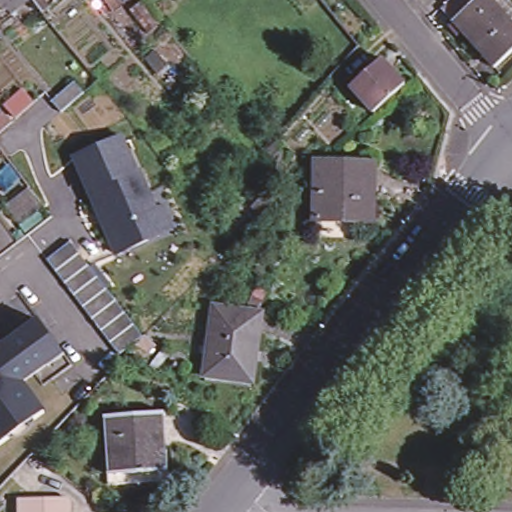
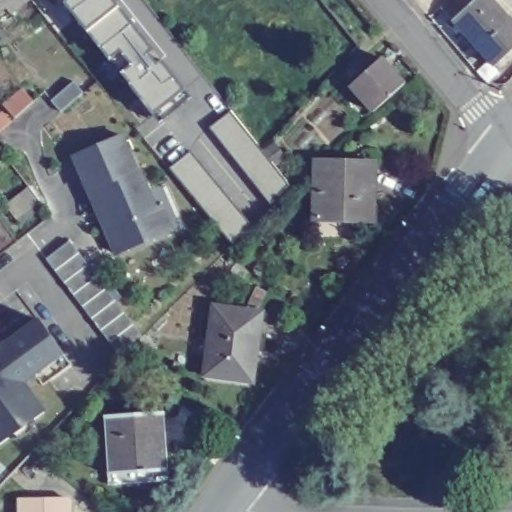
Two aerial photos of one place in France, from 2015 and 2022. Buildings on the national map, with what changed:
unchanged [(7,19),(0,7),(0,0),(23,0),(26,5),(7,19)]
new [(183,90),(191,99),(160,124),(155,116),(120,73),(100,49),(64,4),(61,0),(112,0),(117,7),(183,90)]
unchanged [(494,0),(488,5),(503,22),(473,49),(443,12),(436,4),(441,0),(494,0)]
unchanged [(503,22),(512,32),(512,58),(493,74),(473,49),(503,22)]
unchanged [(371,110),(346,84),(377,55),(401,81),(371,110)]
unchanged [(53,99),(75,78),(85,89),(63,109),(53,99)]
new [(3,107),(26,89),(36,101),(12,120),(0,131),(0,115),(5,111),(3,107)]
new [(232,112),(288,187),(270,207),(210,129),(232,112)]
unchanged [(175,225),(161,231),(117,250),(104,220),(90,189),(74,154),(122,132),(137,166),(140,165),(158,206),(165,202),(175,225)]
unchanged [(267,150),(278,142),(285,150),(273,159),(267,150)]
new [(0,153),(0,149),(2,152),(0,153)]
new [(192,152),(251,227),(232,247),(171,169),(192,152)]
unchanged [(341,155),(341,162),(373,164),(371,220),(315,217),(317,155),(341,155)]
unchanged [(70,240),(93,270),(145,338),(122,357),(46,258),(70,240)]
unchanged [(257,306),(248,373),(201,368),(210,301),(257,306)]
unchanged [(46,407),(0,444),(0,339),(1,341),(38,315),(65,351),(27,379),(46,407)]
unchanged [(160,408),(163,468),(103,470),(100,409),(160,408)]
unchanged [(18,497),(73,495),(75,512),(19,512),(18,497)]

